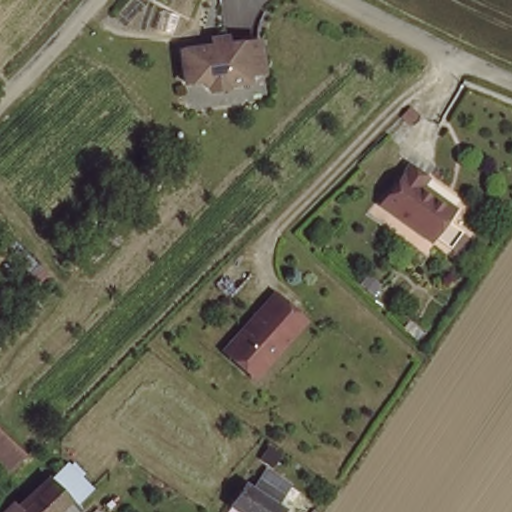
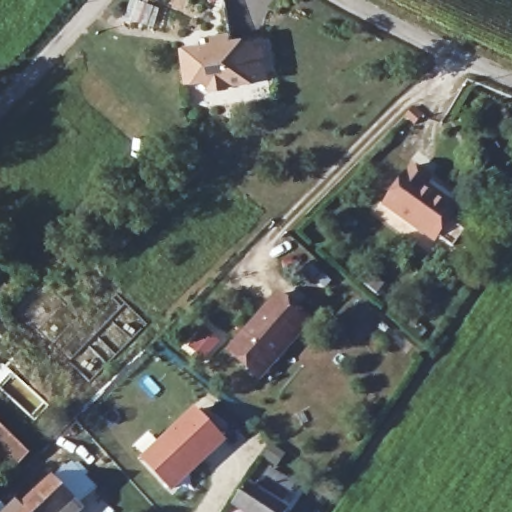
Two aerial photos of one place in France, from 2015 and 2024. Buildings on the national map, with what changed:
unchanged [(213,79),(205,71),(187,72),(183,40),(208,37),(208,41),(215,41),(215,26),(228,26),(229,31),(263,30),(264,61),(233,65),(228,79),(213,79)]
unchanged [(433,230),(431,233),(381,197),(409,159),(426,170),(421,177),(454,201),(445,214),(462,225),(450,240),(433,230)]
unchanged [(260,366),(233,342),(279,285),(312,313),(277,356),(264,370),(260,366)]
new [(172,492),(140,458),(195,407),(227,441),(172,492)]
unchanged [(30,452),(8,474),(0,466),(0,423),(30,452)]
unchanged [(28,500),(49,478),(62,465),(86,491),(74,504),(65,512),(15,512),(28,500)]
unchanged [(288,510),(286,512),(243,512),(229,502),(244,477),(255,485),(260,477),(286,496),(281,505),(288,510)]

